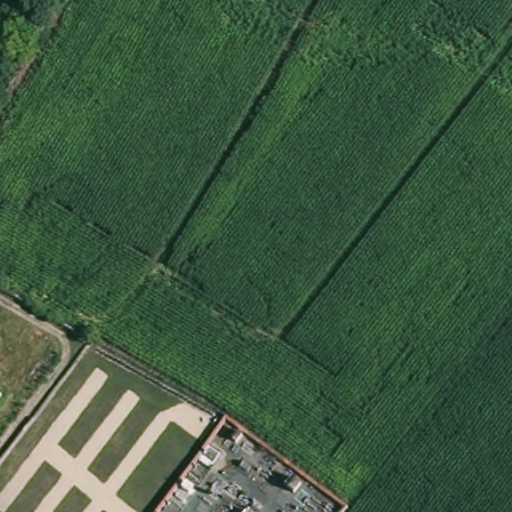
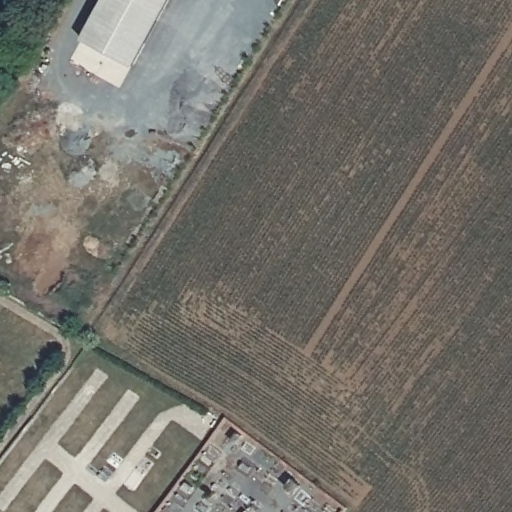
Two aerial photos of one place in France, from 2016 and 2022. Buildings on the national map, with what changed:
new [(81,38),(102,0),(169,0),(134,66),(81,38)]

